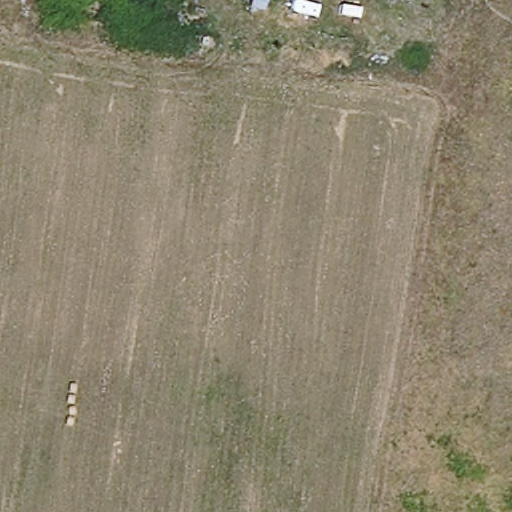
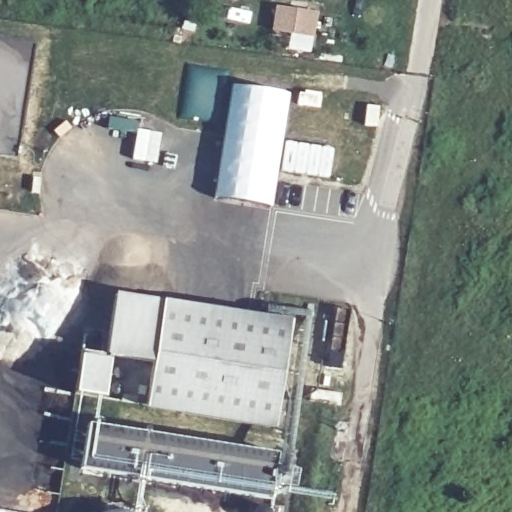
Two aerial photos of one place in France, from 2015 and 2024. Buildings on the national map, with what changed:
new [(275,4),(318,11),(311,52),(286,48),(288,34),(270,31),(275,4)]
new [(231,84),(290,92),(283,140),(278,171),(272,209),(213,198),(231,84)]
new [(109,115),(138,120),(137,128),(162,133),(156,164),(131,159),(136,133),(107,127),(109,115)]
new [(283,140),(333,148),(328,179),(278,171),(283,140)]
new [(112,295),(160,301),(150,368),(107,362),(107,355),(103,354),(112,295)]
new [(150,368),(160,301),(287,320),(271,427),(144,408),(150,368)]
new [(79,350),(103,354),(107,355),(107,362),(101,399),(72,394),(79,350)]
new [(89,426),(275,455),(268,500),(82,470),(89,426)]
new [(104,511),(112,509),(124,508),(137,510),(141,512),(102,512),(104,511)]

